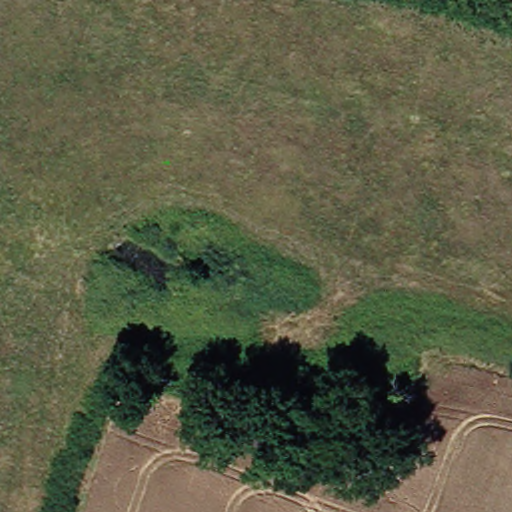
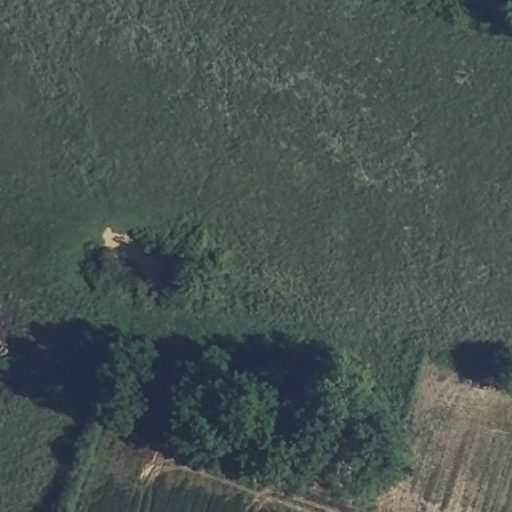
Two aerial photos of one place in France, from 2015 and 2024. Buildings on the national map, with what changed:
[]

